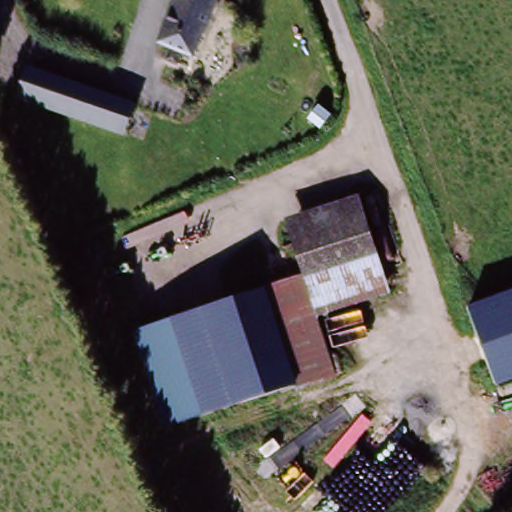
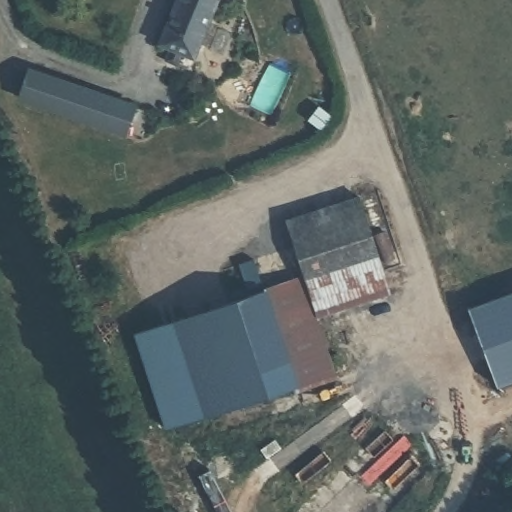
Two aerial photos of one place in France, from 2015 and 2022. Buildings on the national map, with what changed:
unchanged [(160,47),(179,0),(213,0),(190,59),(160,47)]
unchanged [(141,113),(130,142),(29,107),(17,104),(26,76),(38,80),(40,76),(141,113)]
unchanged [(287,237),(359,212),(372,251),(301,276),(287,237)]
unchanged [(386,290),(314,315),(301,276),(372,251),(386,290)]
unchanged [(301,276),(314,315),(336,374),(296,388),(261,290),(301,276)]
unchanged [(512,288),(512,375),(499,380),(472,301),(512,288)]
unchanged [(296,388),(245,408),(209,310),(261,290),(296,388)]
unchanged [(245,408),(216,418),(182,320),(209,310),(245,408)]
unchanged [(167,435),(133,338),(182,320),(216,418),(167,435)]

